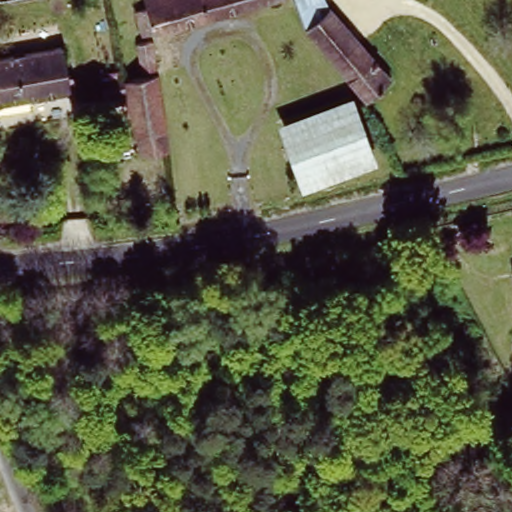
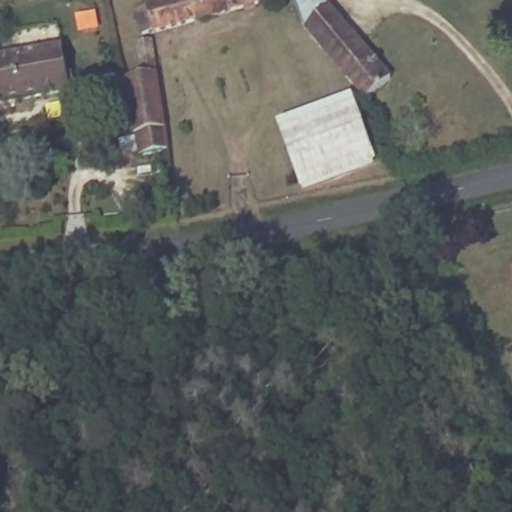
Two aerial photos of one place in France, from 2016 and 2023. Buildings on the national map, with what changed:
unchanged [(293,1),(148,38),(142,13),(154,10),(151,0),(293,0),(293,1)]
unchanged [(390,79),(364,101),(357,92),(300,25),(326,4),(390,79)]
unchanged [(0,107),(0,61),(65,49),(72,94),(0,107)]
unchanged [(157,49),(161,75),(145,77),(141,52),(157,49)]
unchanged [(143,159),(139,137),(133,138),(127,100),(106,103),(104,89),(132,84),(161,80),(170,132),(173,154),(143,159)]
unchanged [(357,92),(379,155),(306,179),(284,117),(357,92)]

